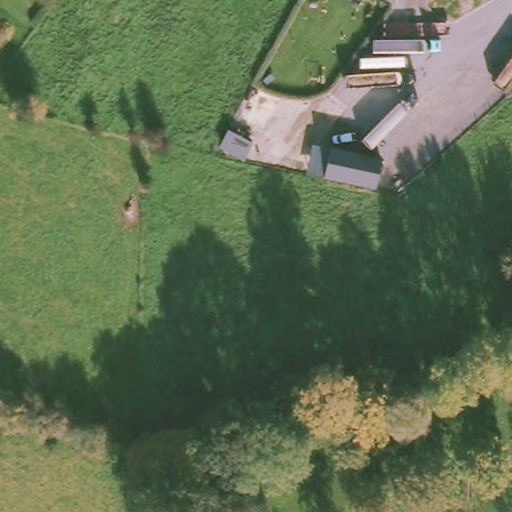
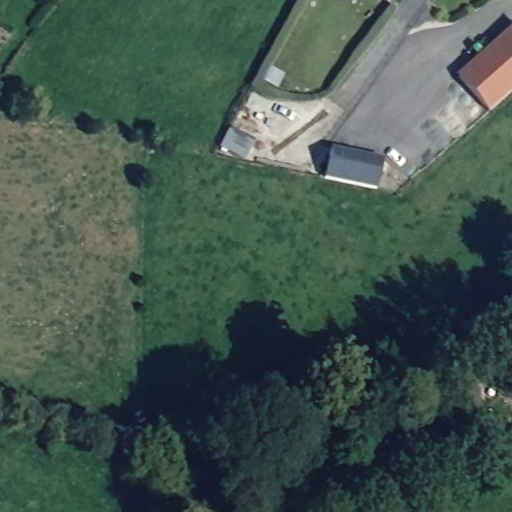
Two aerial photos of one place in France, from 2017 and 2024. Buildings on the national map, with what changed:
unchanged [(383,0),(392,0),(390,4),(383,0)]
new [(512,25),(512,91),(487,113),(455,76),(512,25)]
unchanged [(230,135),(252,148),(245,162),(222,149),(230,135)]
unchanged [(381,158),(376,189),(305,174),(311,144),(381,158)]

